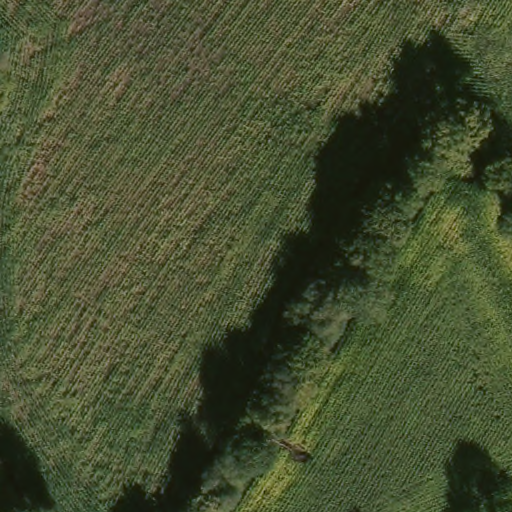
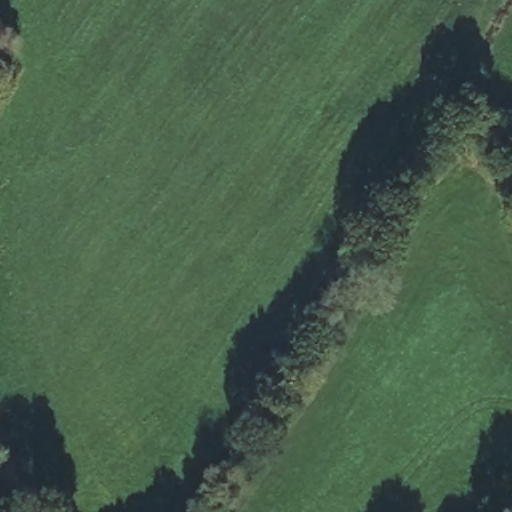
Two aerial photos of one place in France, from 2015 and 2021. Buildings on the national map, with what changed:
[]

